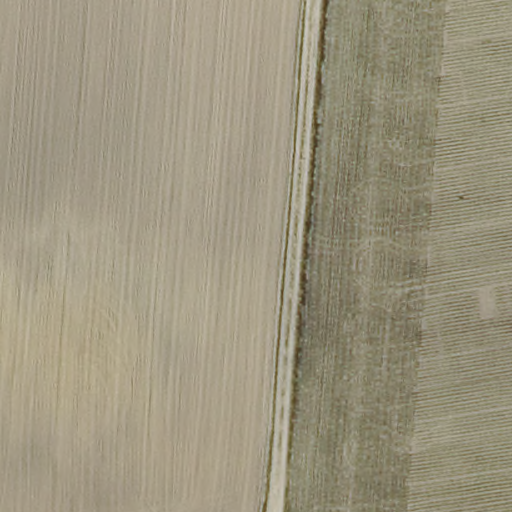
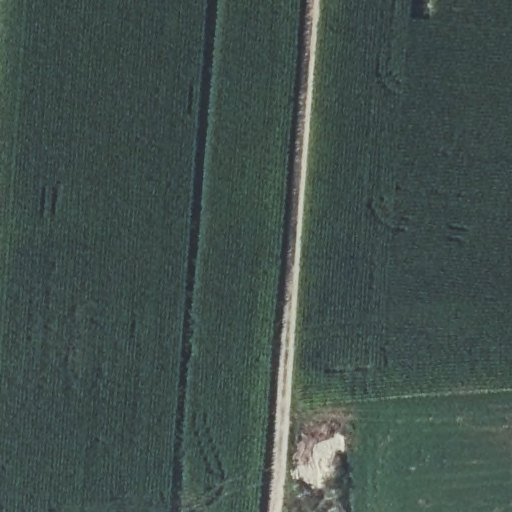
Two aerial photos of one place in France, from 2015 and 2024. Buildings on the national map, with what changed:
[]

